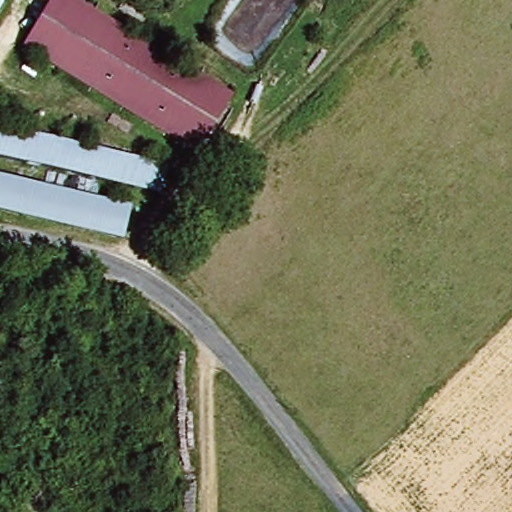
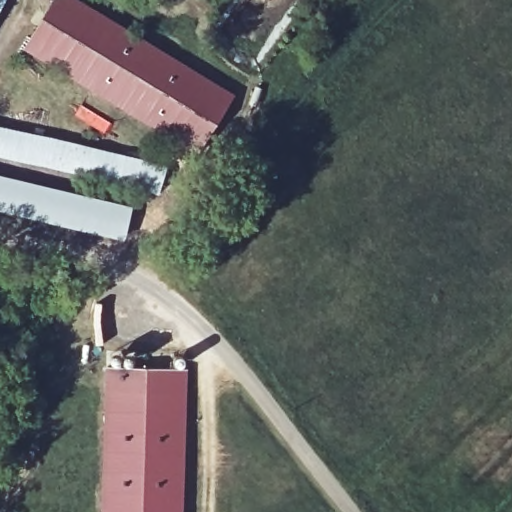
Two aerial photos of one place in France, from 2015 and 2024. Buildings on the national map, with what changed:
unchanged [(227,95),(189,152),(23,53),(17,49),(46,0),(69,0),(227,95)]
unchanged [(161,172),(155,196),(0,161),(0,135),(161,172)]
unchanged [(123,212),(117,239),(0,212),(0,185),(123,212)]
new [(186,370),(182,512),(100,512),(103,367),(186,370)]

